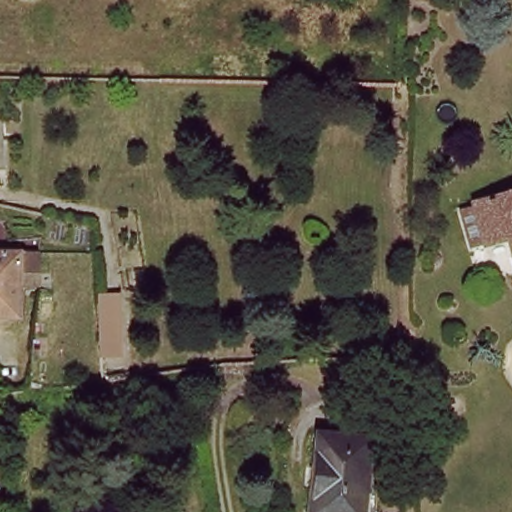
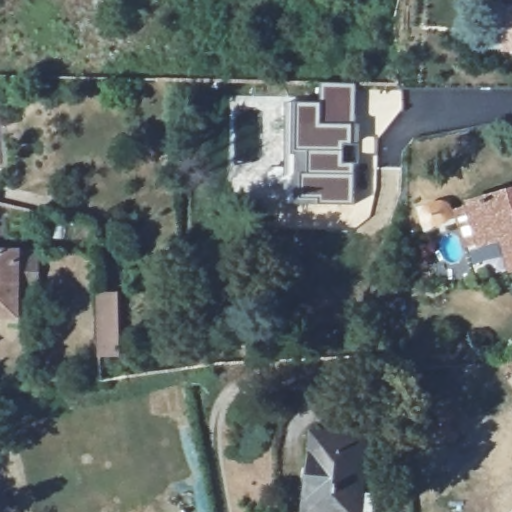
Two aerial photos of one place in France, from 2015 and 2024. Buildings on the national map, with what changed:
new [(505,8),(512,8),(512,50),(505,50),(505,41),(505,8)]
new [(321,100),(321,81),(355,82),(356,146),(345,146),(345,161),(355,161),(355,205),(317,206),(285,204),(285,137),(283,95),(321,100)]
unchanged [(6,134),(5,120),(18,120),(19,133),(6,134)]
unchanged [(248,159),(246,135),(260,134),(262,158),(248,159)]
unchanged [(491,241),(477,245),(467,212),(482,209),(480,204),(512,195),(512,239),(492,244),(491,241)]
new [(448,197),(457,220),(432,228),(429,219),(425,220),(421,206),(448,197)]
unchanged [(38,283),(19,283),(19,316),(0,316),(0,253),(19,253),(19,256),(38,257),(38,283)]
unchanged [(100,340),(101,295),(116,294),(117,340),(100,340)]
unchanged [(321,435),(372,440),(365,512),(307,512),(314,434),(321,435)]

